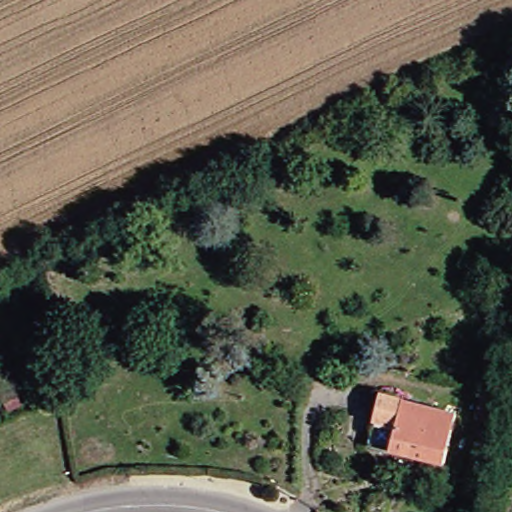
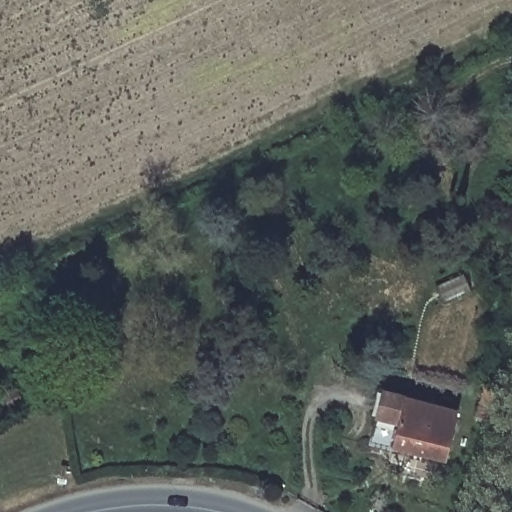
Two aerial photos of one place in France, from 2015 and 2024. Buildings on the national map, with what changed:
unchanged [(491,420),(478,417),(485,389),(498,392),(491,420)]
unchanged [(435,470),(359,451),(371,400),(447,418),(435,470)]

